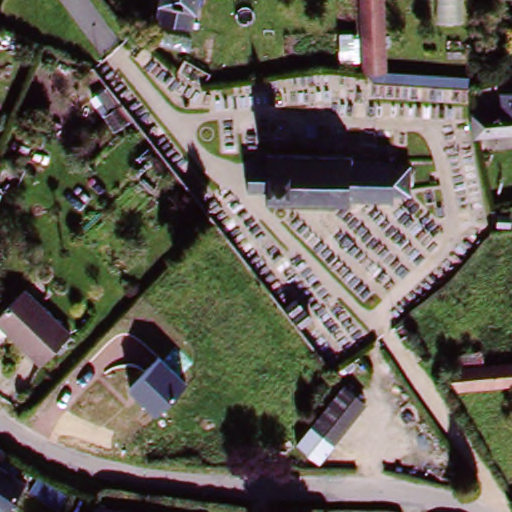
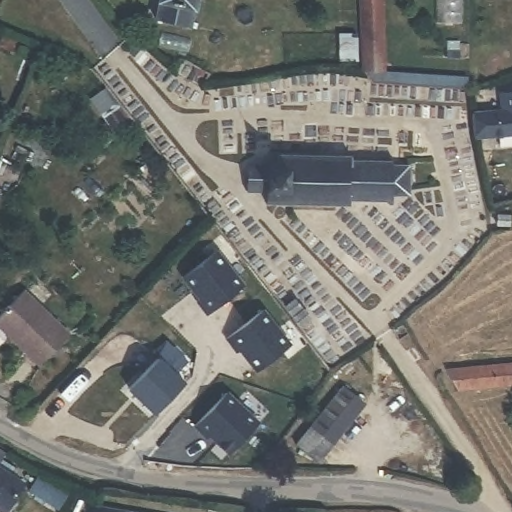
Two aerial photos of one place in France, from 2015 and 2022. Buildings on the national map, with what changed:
unchanged [(192,30),(156,21),(162,0),(200,0),(192,30)]
unchanged [(361,0),(378,0),(383,72),(366,73),(361,0)]
unchanged [(340,62),(340,38),(356,38),(356,62),(340,62)]
unchanged [(377,73),(383,72),(468,77),(468,88),(368,81),(366,73),(377,73)]
unchanged [(478,137),(476,115),(509,113),(507,94),(512,94),(512,135),(478,137)]
unchanged [(264,208),(263,200),(263,196),(245,195),(245,164),(264,164),(265,150),(345,154),(345,158),(366,160),(384,161),(385,167),(400,167),(400,197),(385,197),(383,204),(362,203),(343,202),(343,211),(264,208)]
new [(214,248),(241,284),(206,311),(196,297),(198,295),(182,273),(214,248)]
unchanged [(0,330),(0,316),(23,291),(70,334),(40,366),(0,330)]
new [(260,308),(287,343),(255,369),(239,347),(236,349),(225,335),(260,308)]
unchanged [(182,383),(152,415),(125,391),(155,359),(182,383)]
unchanged [(447,394),(445,374),(512,368),(512,388),(447,394)]
unchanged [(368,405),(332,446),(312,428),(349,388),(368,405)]
new [(227,394),(260,425),(231,455),(211,436),(209,439),(196,427),(227,394)]
unchanged [(255,443),(262,450),(256,457),(248,451),(255,443)]
unchanged [(0,512),(0,465),(10,471),(3,482),(20,492),(9,512),(0,512)]
unchanged [(124,512),(84,512),(85,504),(124,512)]

